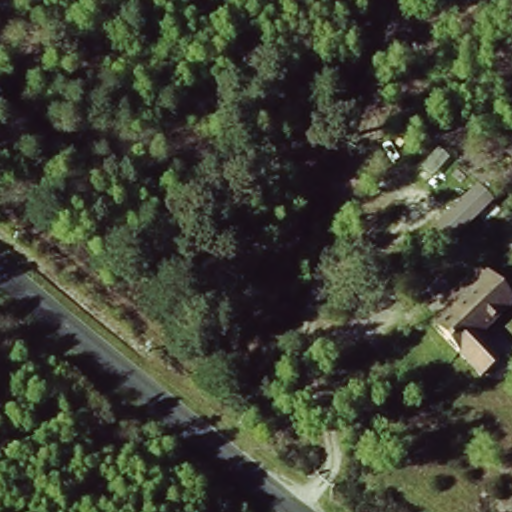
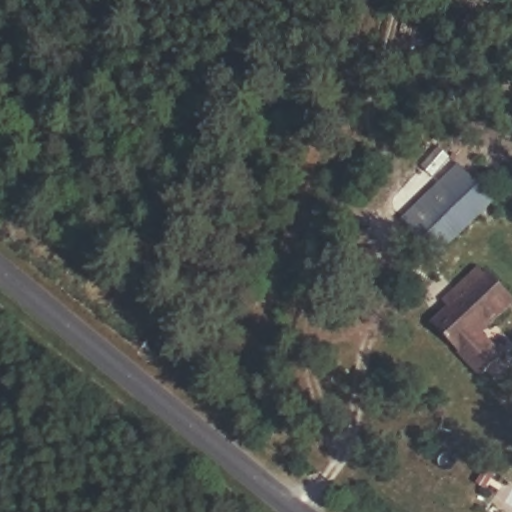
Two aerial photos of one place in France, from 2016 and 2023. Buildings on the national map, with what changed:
new [(459,167),(493,201),(435,256),(420,242),(398,216),(459,167)]
unchanged [(512,304),(512,315),(463,362),(430,330),(450,314),(445,300),(478,270),(497,289),(512,304)]

